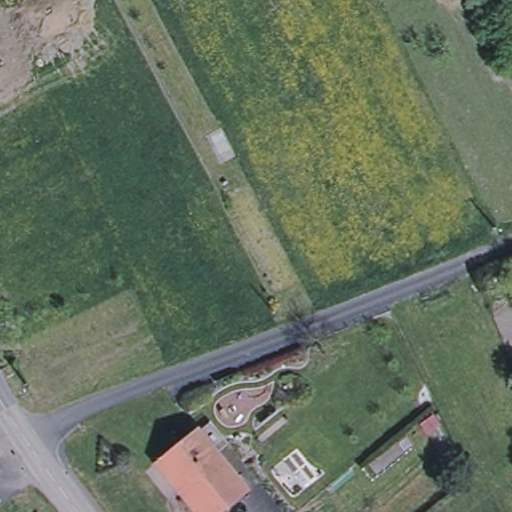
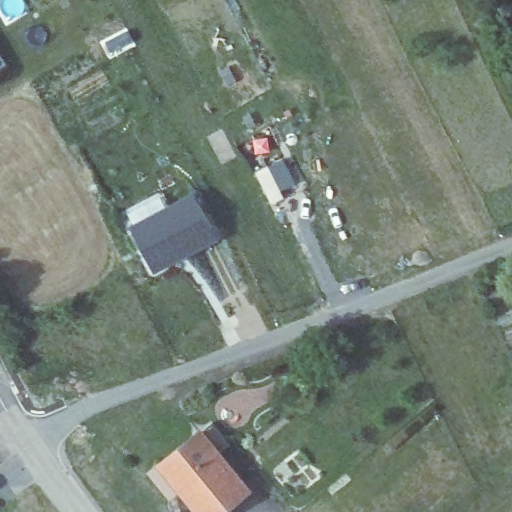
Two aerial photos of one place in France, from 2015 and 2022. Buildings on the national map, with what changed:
new [(283,160),(296,187),(281,193),(285,199),(270,206),(255,173),(283,160)]
new [(218,240),(153,272),(130,226),(194,192),(218,240)]
unchanged [(225,446),(212,456),(244,493),(220,512),(195,512),(155,464),(194,433),(207,423),(225,446)]

